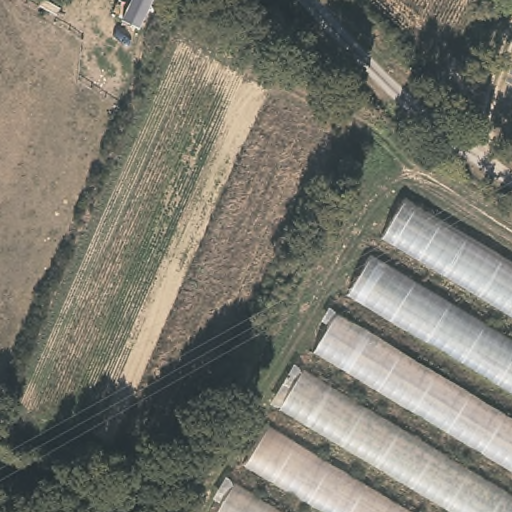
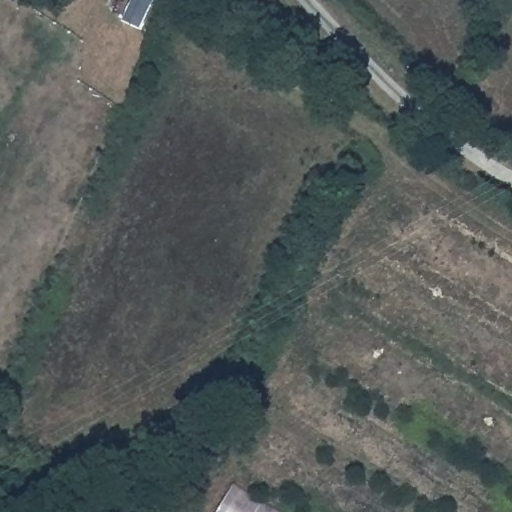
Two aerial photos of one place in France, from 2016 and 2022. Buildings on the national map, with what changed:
demolished [(512,318),(381,237),(405,200),(512,264),(512,318)]
demolished [(371,257),(512,343),(512,395),(347,295),(371,257)]
demolished [(512,475),(313,352),(338,317),(512,424),(512,475)]
demolished [(512,512),(450,512),(278,408),(302,376),(512,497),(512,512)]
demolished [(412,512),(320,512),(247,467),(272,431),(412,512)]
unchanged [(278,512),(219,512),(236,486),(278,512)]

